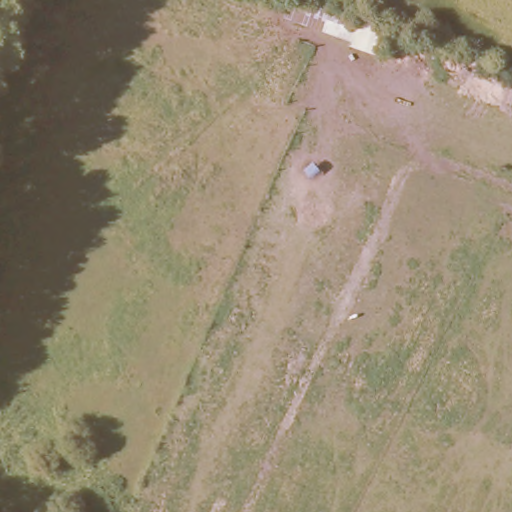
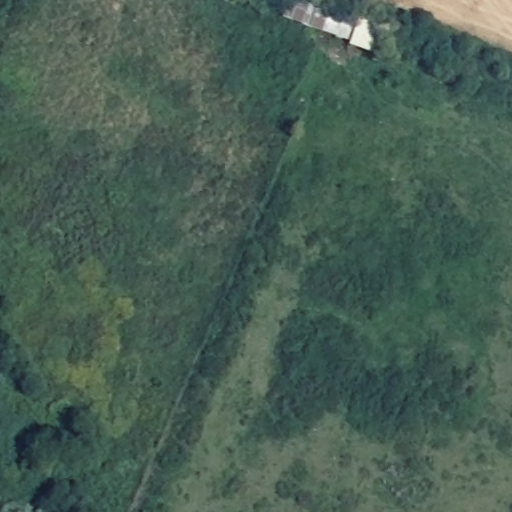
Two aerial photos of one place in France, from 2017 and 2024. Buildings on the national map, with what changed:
unchanged [(294,0),(387,29),(381,60),(279,19),(287,0),(294,0)]

